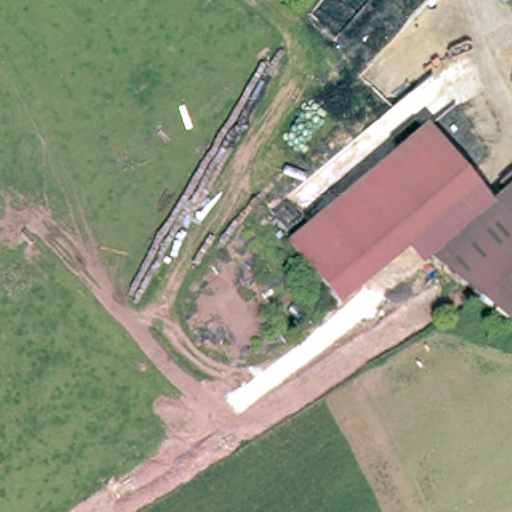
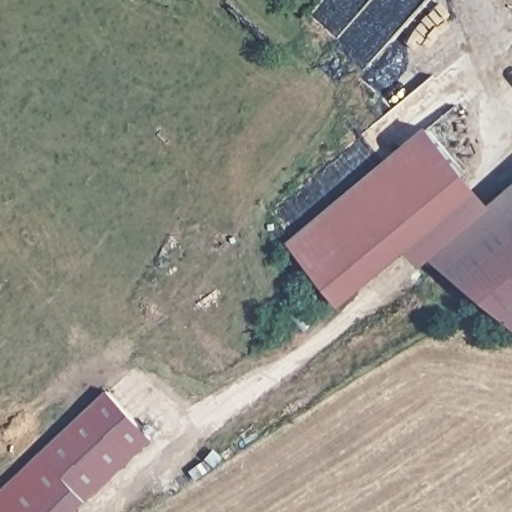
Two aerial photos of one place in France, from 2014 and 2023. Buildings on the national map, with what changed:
unchanged [(290,239),(430,125),(445,138),(467,171),(480,185),(339,300),(327,286),(290,239)]
unchanged [(427,255),(512,177),(512,326),(427,255)]
new [(76,512),(0,512),(0,491),(107,390),(154,440),(88,501),(76,512)]

